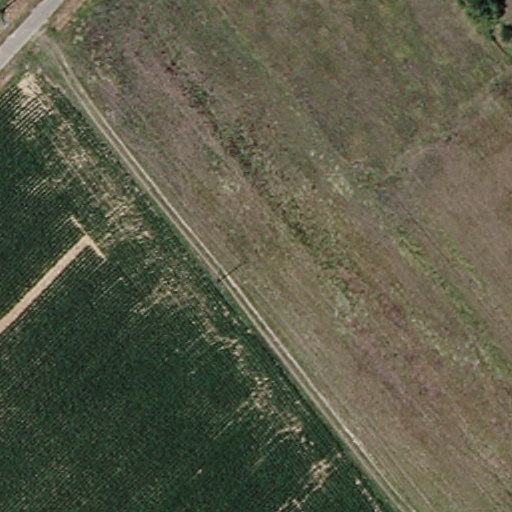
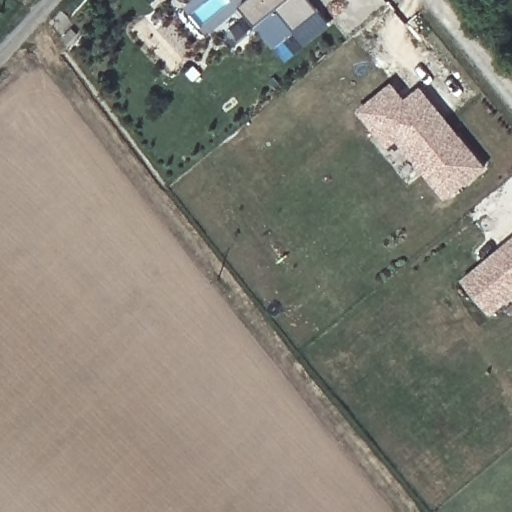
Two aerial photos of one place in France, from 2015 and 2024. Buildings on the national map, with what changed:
new [(293,31),(276,10),(255,27),(238,7),(246,0),(309,0),(318,11),(293,31)]
new [(405,102),(414,95),(420,90),(458,138),(482,167),(445,198),(396,139),(387,146),(359,111),(391,86),(405,102)]
new [(496,256),(512,243),(512,297),(490,316),(462,284),(482,267),(496,256)]

